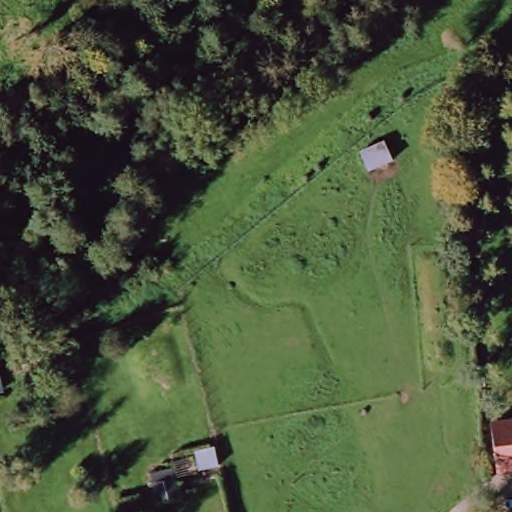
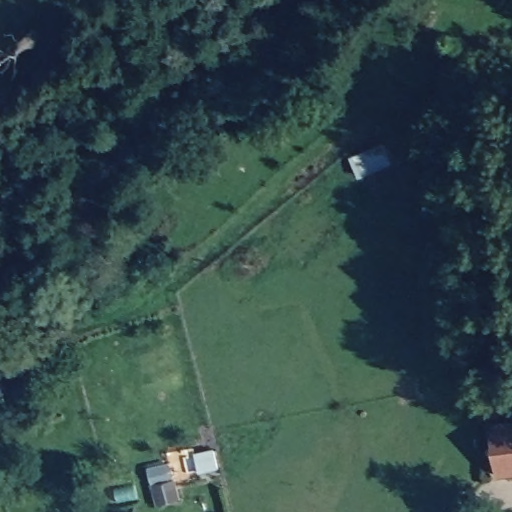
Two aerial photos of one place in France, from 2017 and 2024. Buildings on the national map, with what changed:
unchanged [(490,423),(512,420),(512,475),(497,477),(490,423)]
unchanged [(176,478),(181,499),(157,503),(154,483),(176,478)]

